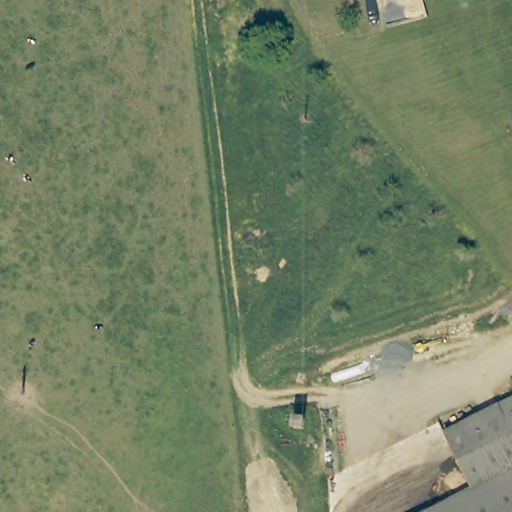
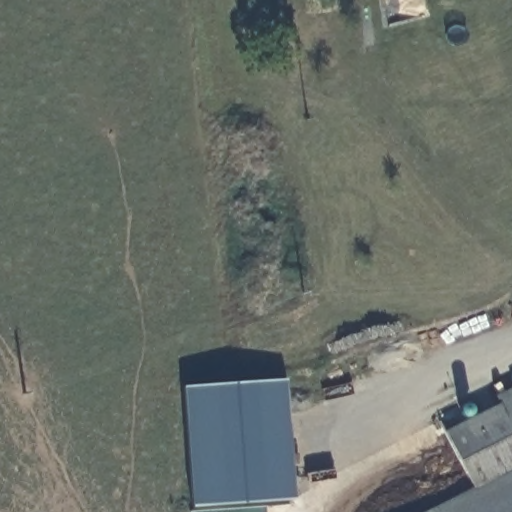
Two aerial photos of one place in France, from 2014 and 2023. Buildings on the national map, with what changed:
demolished [(427,18),(422,0),(465,0),(466,7),(427,18)]
new [(285,380),(293,501),(191,508),(183,387),(285,380)]
unchanged [(512,400),(512,512),(427,512),(474,489),(445,432),(512,400)]

